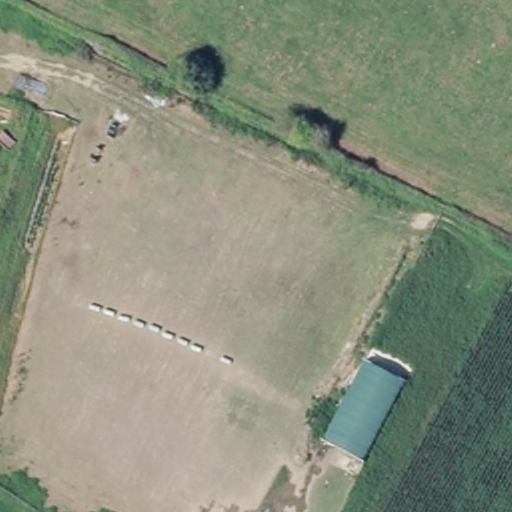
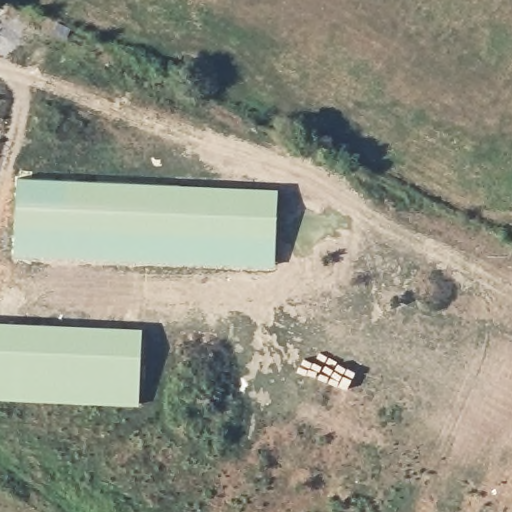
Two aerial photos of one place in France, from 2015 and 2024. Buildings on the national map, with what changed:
new [(16,177),(195,185),(278,188),(275,270),(131,266),(11,259),(16,177)]
new [(59,325),(142,326),(140,407),(28,403),(0,402),(0,323),(59,325)]
unchanged [(404,382),(364,464),(323,441),(363,364),(404,382)]

